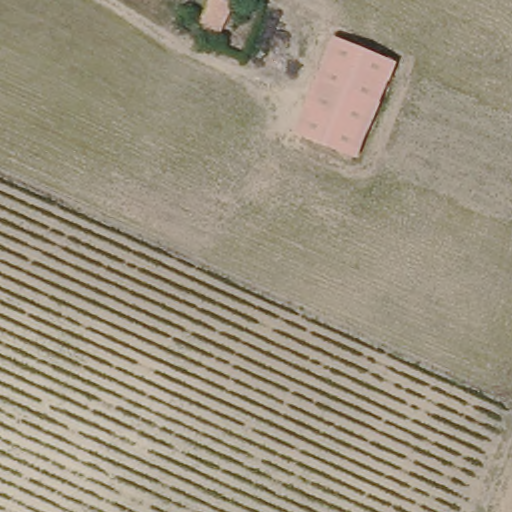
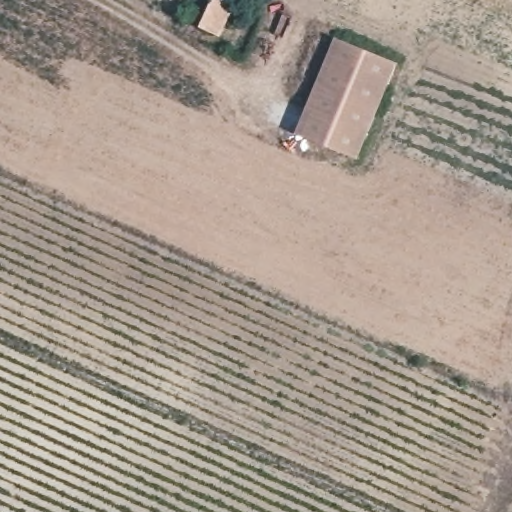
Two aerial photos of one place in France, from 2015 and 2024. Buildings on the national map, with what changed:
unchanged [(218,36),(198,27),(211,0),(230,0),(233,2),(218,36)]
unchanged [(356,157),(296,132),(335,39),(395,63),(356,157)]

